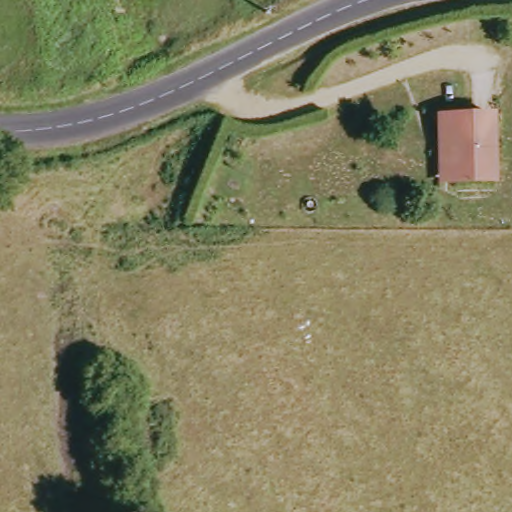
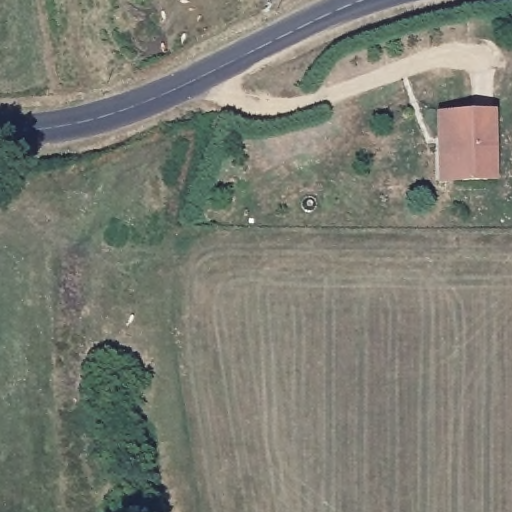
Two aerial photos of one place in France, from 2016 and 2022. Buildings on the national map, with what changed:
unchanged [(448,138),(447,113),(501,111),(503,178),(458,180),(450,181),(448,138)]

